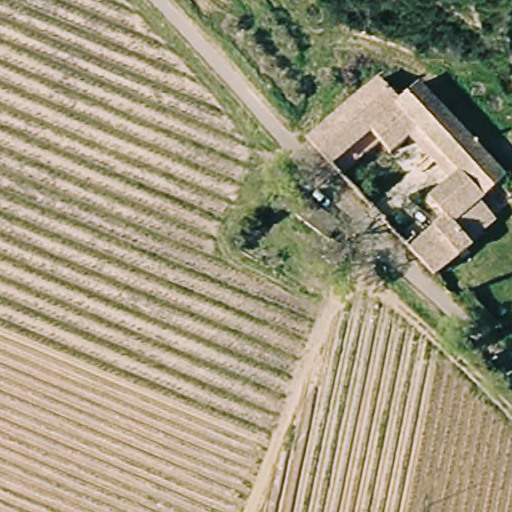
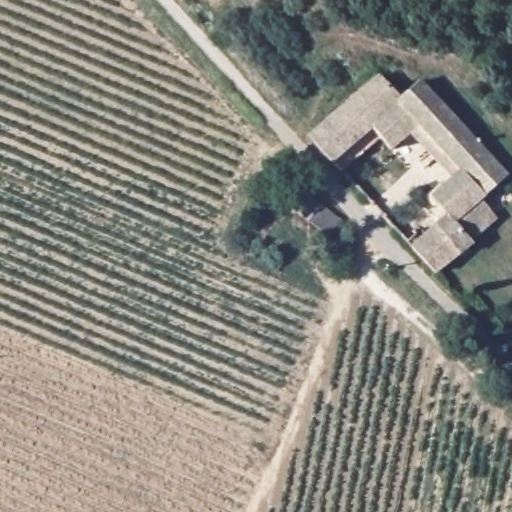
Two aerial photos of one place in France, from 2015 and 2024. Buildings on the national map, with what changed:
unchanged [(414,244),(444,217),(425,196),(456,167),(449,158),(441,166),(414,135),(379,164),(366,149),(343,169),(312,136),(384,71),(409,97),(427,81),(508,166),(480,191),(501,214),(442,272),(414,244)]
unchanged [(293,182),(344,224),(332,240),(280,200),(293,182)]
unchanged [(350,256),(337,270),(325,261),(337,246),(350,256)]

